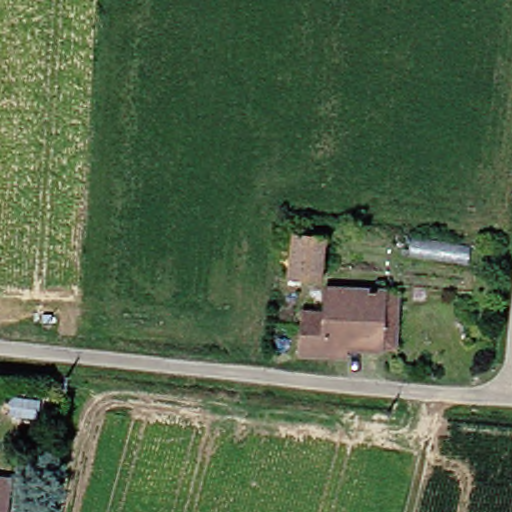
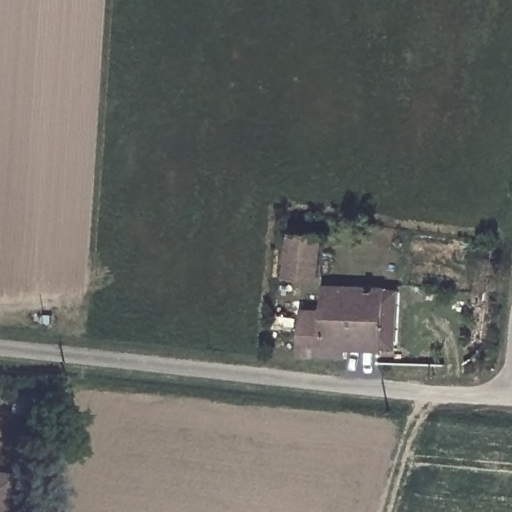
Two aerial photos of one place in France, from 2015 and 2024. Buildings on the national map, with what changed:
unchanged [(312,278),(285,275),(286,236),(313,235),(312,278)]
unchanged [(293,347),(295,314),(314,316),(316,287),(370,290),(366,353),(332,352),(331,369),(293,366),(293,347)]
unchanged [(370,290),(391,292),(388,354),(366,353),(370,290)]
unchanged [(0,475),(5,476),(1,512),(0,512),(0,475)]

